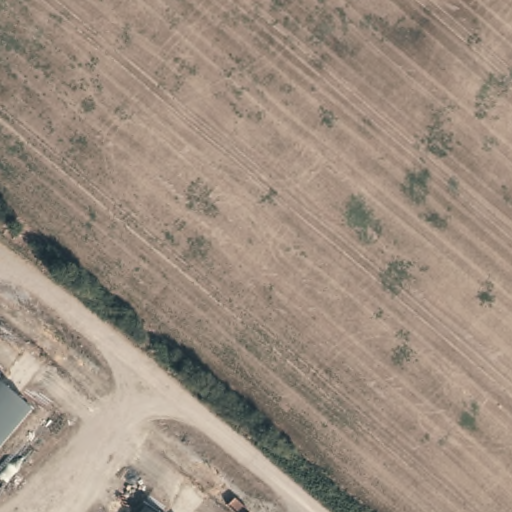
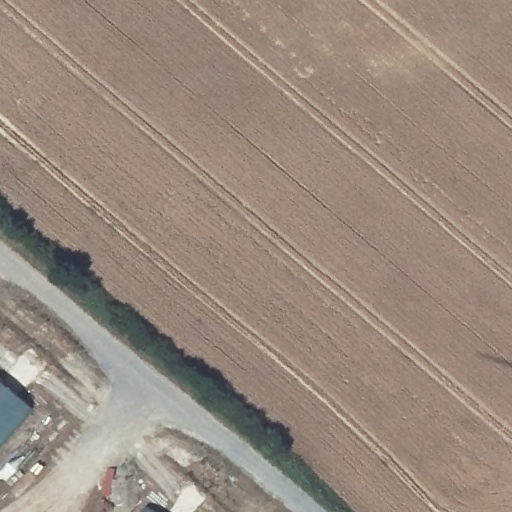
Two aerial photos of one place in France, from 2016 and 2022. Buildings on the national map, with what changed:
unchanged [(36,407),(0,450),(0,377),(36,407)]
unchanged [(155,512),(142,512),(147,506),(155,512)]

